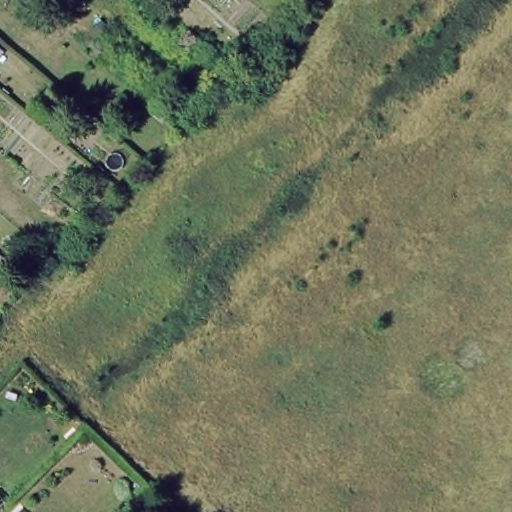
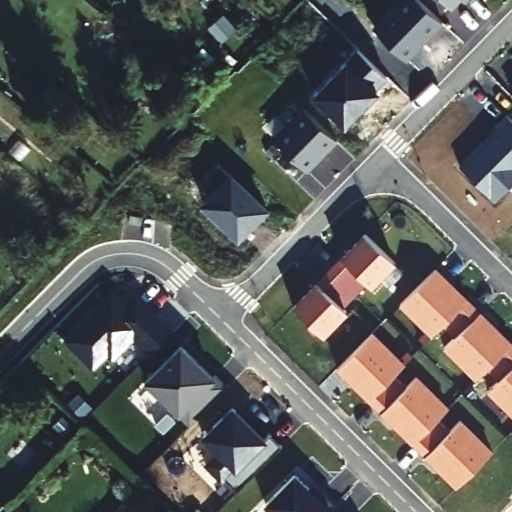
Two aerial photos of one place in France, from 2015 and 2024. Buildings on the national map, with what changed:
new [(442,22),(405,58),(374,26),(399,0),(419,0),(442,22)]
new [(450,8),(443,0),(457,0),(450,8)]
new [(465,1),(464,0),(466,0),(465,1)]
new [(389,76),(377,87),(380,90),(345,126),(313,93),(345,59),(357,47),(389,76)]
new [(336,140),(307,169),(272,135),(302,105),(336,140)]
new [(508,115),(512,119),(512,179),(495,199),(460,164),(508,115)]
new [(267,210),(239,237),(204,203),(220,187),(207,175),(220,162),(267,210)]
new [(396,262),(372,287),(368,283),(344,308),(347,312),(324,336),(292,305),(364,231),(396,262)]
new [(512,341),(512,416),(487,391),(499,380),(487,368),(475,381),(443,347),(455,336),(443,323),(431,335),(398,304),(435,267),(512,341)]
new [(94,369),(63,339),(112,289),(125,302),(136,291),(174,329),(149,354),(134,340),(114,360),(109,355),(94,369)]
new [(406,362),(394,374),(405,386),(417,373),(449,406),(439,418),(450,429),(461,417),(492,449),(455,489),(337,368),(373,331),(406,362)]
new [(182,345),(226,388),(192,422),(182,411),(179,414),(144,380),(181,346),(182,345)]
new [(212,431),(209,427),(232,403),(266,437),(269,434),(281,446),(237,489),(225,477),(231,472),(215,456),(224,449),(209,434),(212,431)]
new [(326,512),(273,512),(264,503),(295,471),(332,507),(326,512)]

